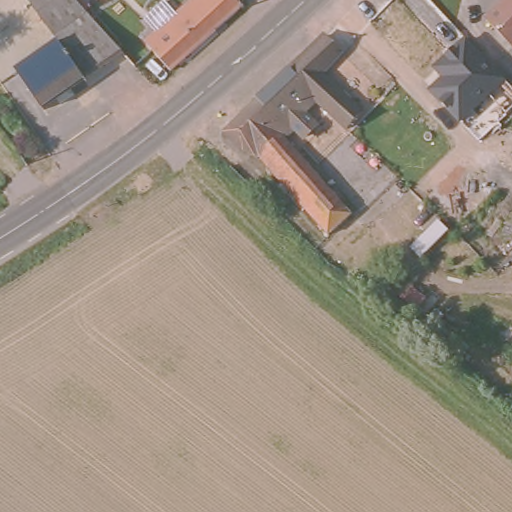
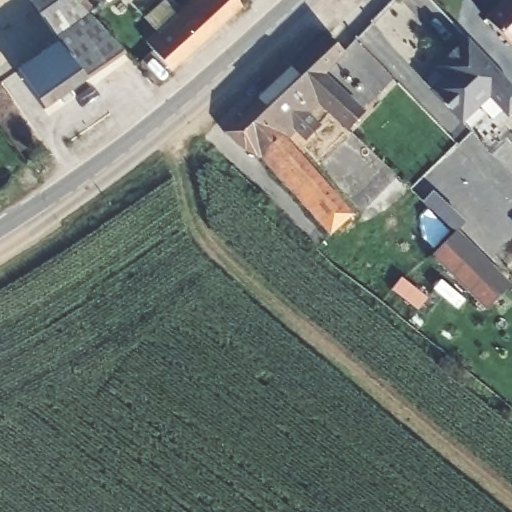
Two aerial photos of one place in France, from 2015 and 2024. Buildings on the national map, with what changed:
unchanged [(117,59),(33,112),(10,75),(52,49),(23,0),(65,0),(117,59)]
unchanged [(240,12),(165,79),(140,51),(194,1),(192,0),(226,0),(240,12)]
unchanged [(485,18),(503,0),(512,0),(512,46),(485,18)]
unchanged [(260,157),(257,160),(225,133),(260,99),(290,70),(325,36),(342,55),(326,76),(366,113),(347,133),(319,105),(286,136),(355,213),(329,236),(260,157)]
unchanged [(508,81),(460,124),(427,87),(441,77),(433,65),(465,36),(508,81)]
unchanged [(451,228),(494,275),(473,295),(430,250),(451,228)]

